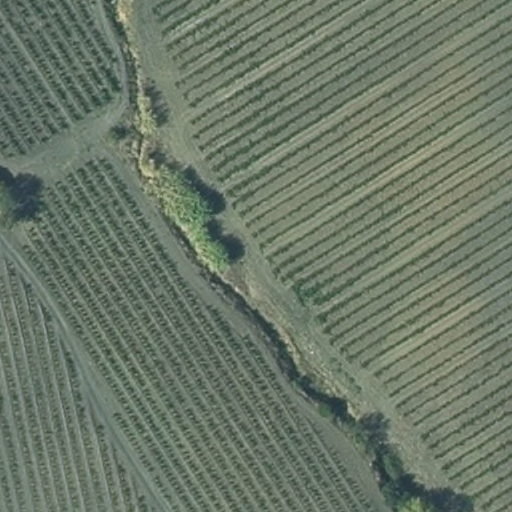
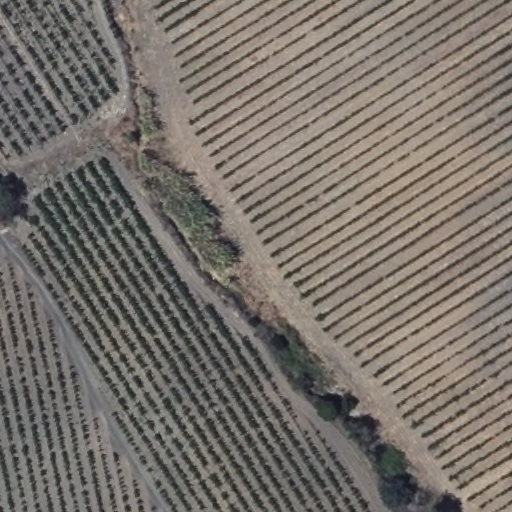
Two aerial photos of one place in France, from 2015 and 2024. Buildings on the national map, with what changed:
unchanged [(5,180),(0,187),(0,176),(5,180)]

